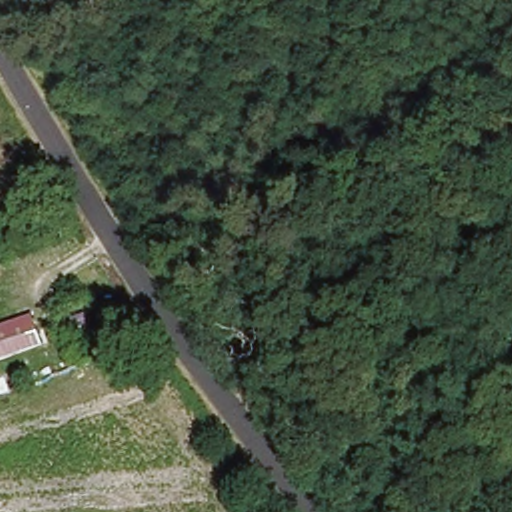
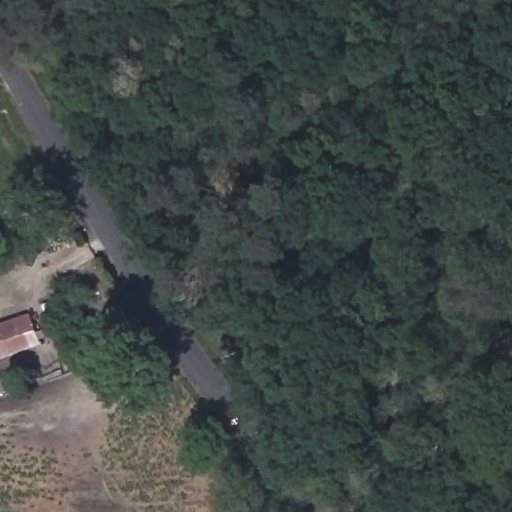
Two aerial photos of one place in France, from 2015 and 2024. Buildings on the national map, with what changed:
unchanged [(0,359),(0,325),(31,313),(41,343),(0,359)]

